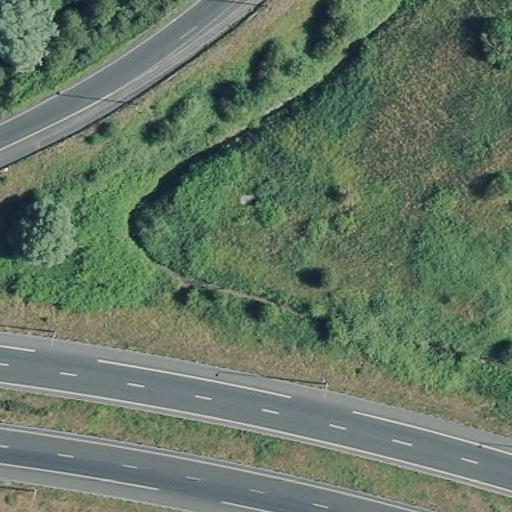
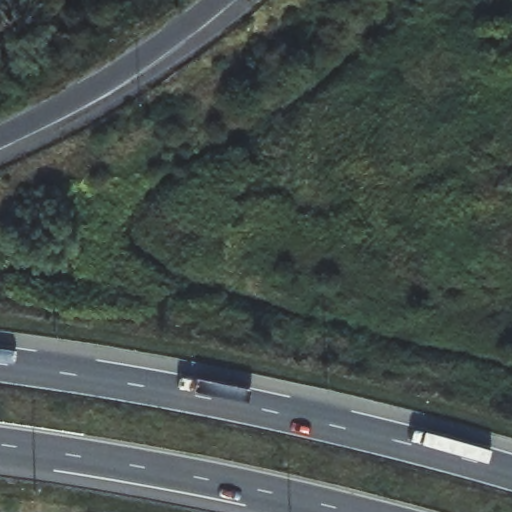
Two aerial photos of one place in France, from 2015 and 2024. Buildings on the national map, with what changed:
[]

